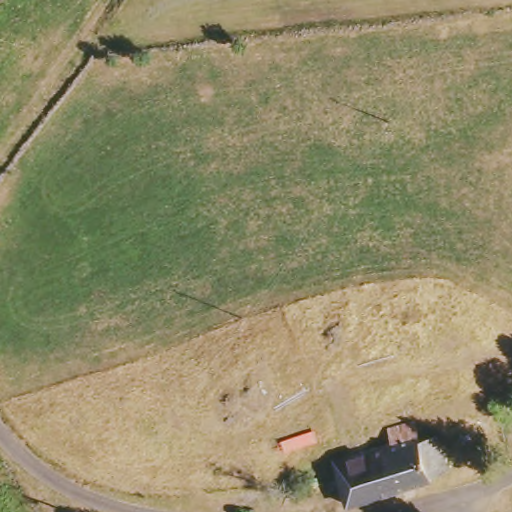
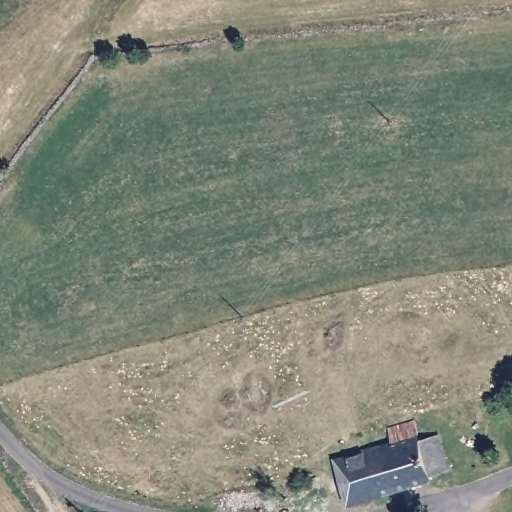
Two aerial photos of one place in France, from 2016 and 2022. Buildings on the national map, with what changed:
unchanged [(407,450),(401,429),(424,422),(432,443),(442,440),(454,474),(355,507),(342,470),(407,450)]

